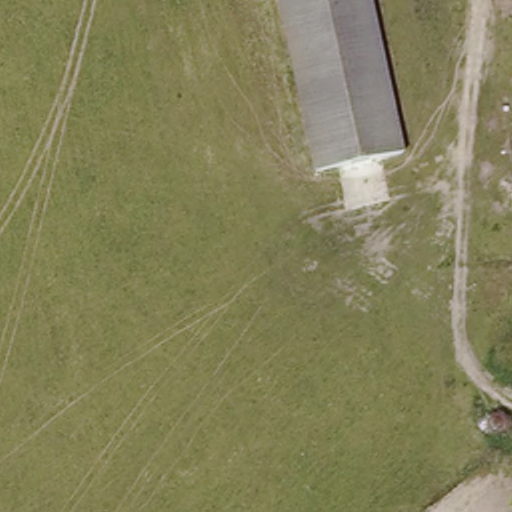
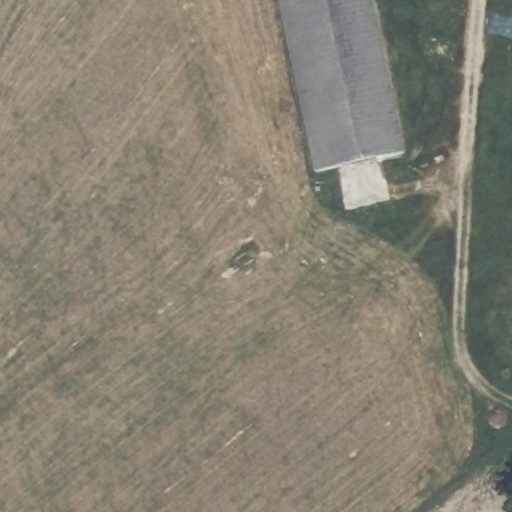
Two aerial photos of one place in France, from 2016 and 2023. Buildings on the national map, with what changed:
unchanged [(408,150),(308,172),(272,0),(375,0),(408,150)]

